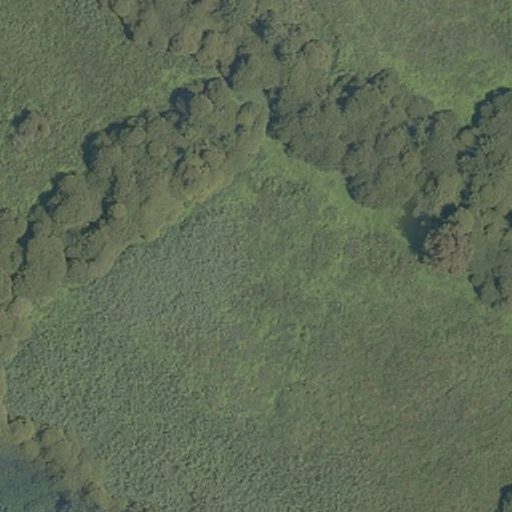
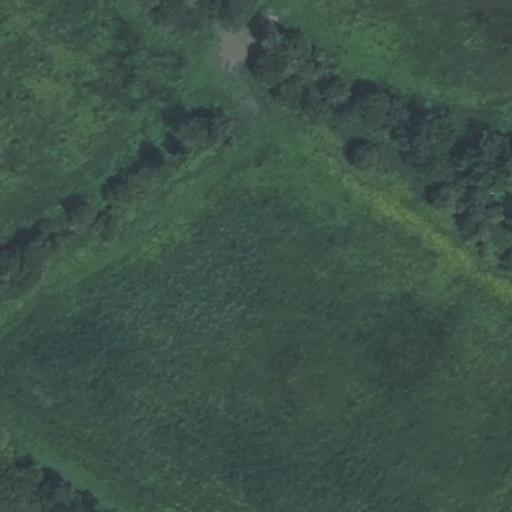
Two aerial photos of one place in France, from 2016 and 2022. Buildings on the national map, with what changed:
[]

